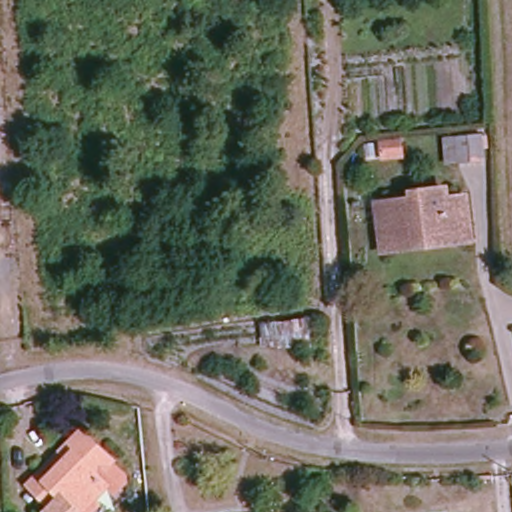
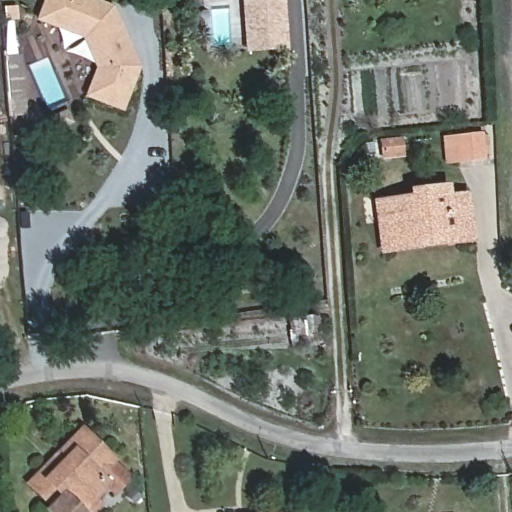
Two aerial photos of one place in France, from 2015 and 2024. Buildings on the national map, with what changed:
new [(110,6),(115,21),(135,66),(120,108),(86,94),(96,67),(83,35),(37,19),(45,0),(92,0),(110,6)]
new [(278,46),(247,49),(244,0),(275,0),(278,46)]
unchanged [(386,135),(407,134),(409,149),(388,151),(386,135)]
unchanged [(483,134),(485,161),(446,164),(444,139),(483,134)]
unchanged [(466,245),(456,245),(383,255),(377,207),(414,202),(413,195),(450,190),(450,202),(470,200),(470,210),(473,232),(475,244),(466,245)]
unchanged [(120,456),(116,459),(130,470),(130,479),(119,489),(112,483),(100,495),(105,500),(93,512),(56,512),(52,508),(56,505),(32,481),(86,425),(120,456)]

